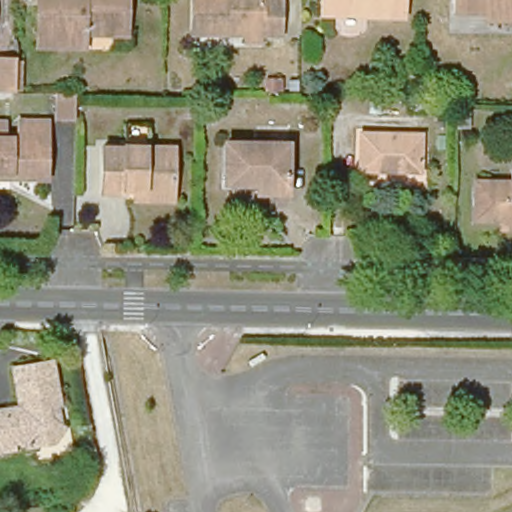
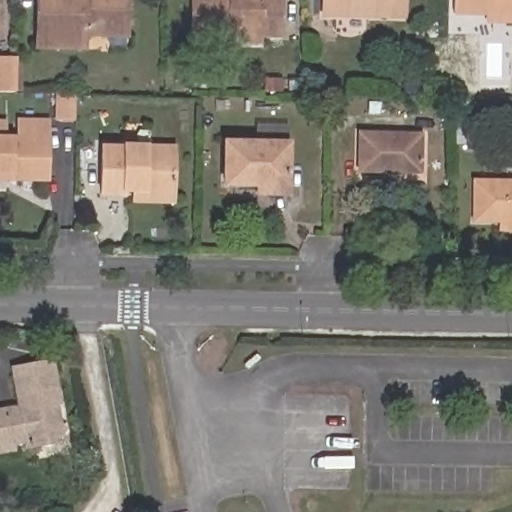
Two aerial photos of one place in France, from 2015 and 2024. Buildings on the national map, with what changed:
unchanged [(126,0),(126,28),(84,28),(84,47),(36,46),(37,0),(126,0)]
unchanged [(269,0),(269,34),(186,32),(187,0),(269,0)]
unchanged [(403,0),(403,16),(324,14),(324,0),(403,0)]
unchanged [(512,0),(512,8),(451,8),(451,0),(512,0)]
unchanged [(0,93),(0,57),(16,57),(15,93),(0,93)]
unchanged [(81,119),(60,118),(60,94),(81,94),(81,119)]
unchanged [(10,140),(26,140),(27,121),(54,123),(51,179),(15,178),(0,178),(0,124),(10,124),(10,140)]
unchanged [(361,131),(418,133),(417,174),(360,172),(361,131)]
unchanged [(253,191),(253,186),(225,185),(226,141),(286,143),(286,186),(286,192),(253,191)]
unchanged [(123,189),(123,193),(98,192),(100,148),(122,149),(122,145),(166,147),(174,147),(173,170),(173,190),(173,200),(133,198),(133,189),(123,189)]
unchanged [(497,219),(473,218),(473,182),(512,183),(512,226),(497,226),(497,219)]
unchanged [(14,365),(51,359),(58,400),(47,402),(50,417),(64,426),(56,437),(26,443),(26,437),(14,440),(15,445),(0,448),(0,409),(20,405),(14,365)]

